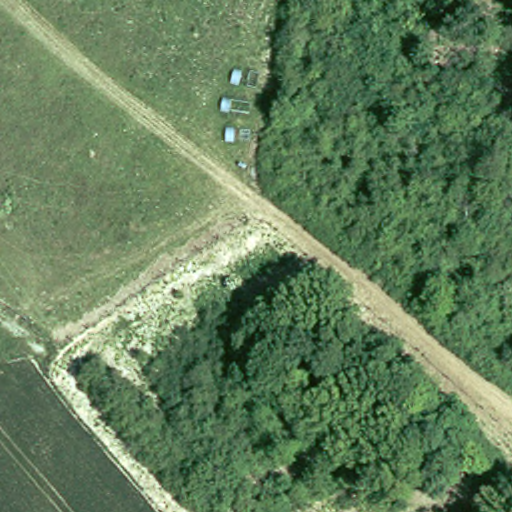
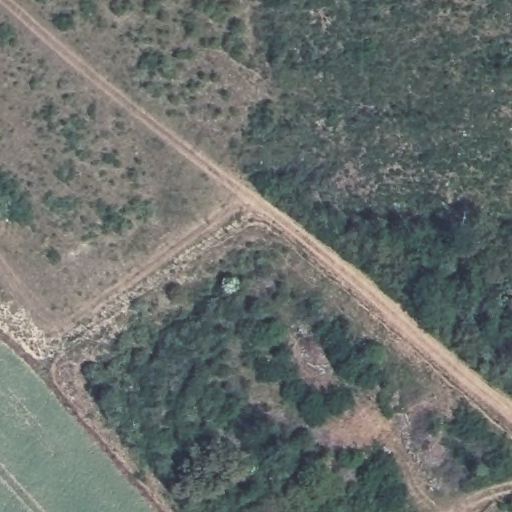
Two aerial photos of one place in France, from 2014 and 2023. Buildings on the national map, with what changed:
[]

